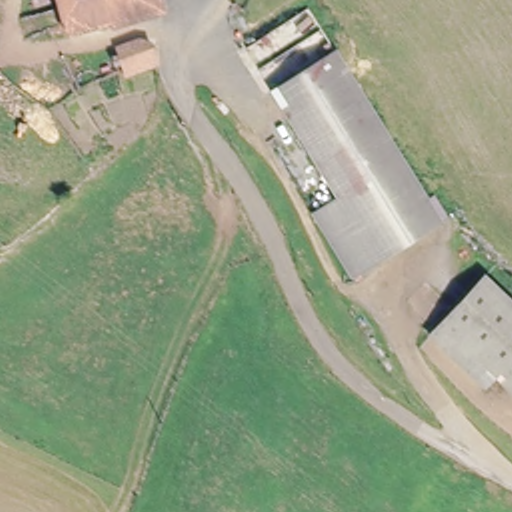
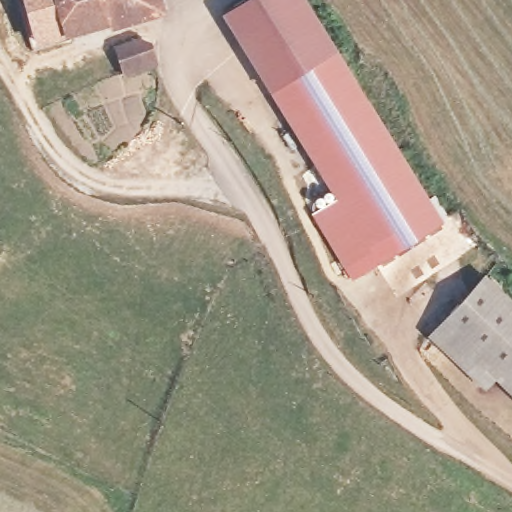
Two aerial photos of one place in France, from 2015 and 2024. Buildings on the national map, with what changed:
unchanged [(58,28),(49,0),(94,0),(103,26),(62,39),(58,28)]
unchanged [(104,31),(103,26),(94,0),(150,0),(154,13),(104,31)]
new [(300,0),(332,49),(265,91),(217,10),(233,0),(300,0)]
unchanged [(111,51),(147,41),(155,69),(119,78),(111,51)]
unchanged [(332,49),(439,226),(350,281),(310,215),(334,199),(265,91),(332,49)]
unchanged [(475,363),(465,375),(428,338),(483,278),(512,307),(512,399),(475,363)]

